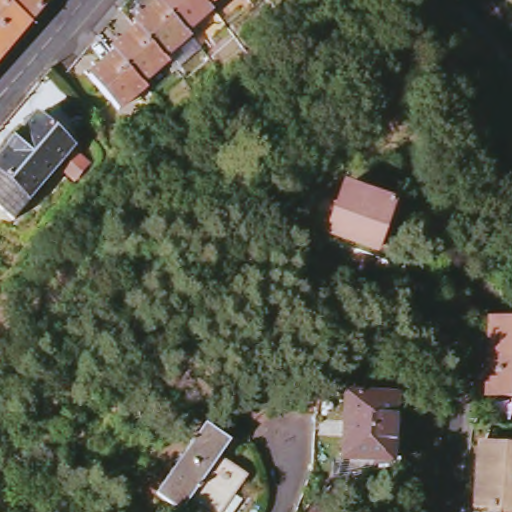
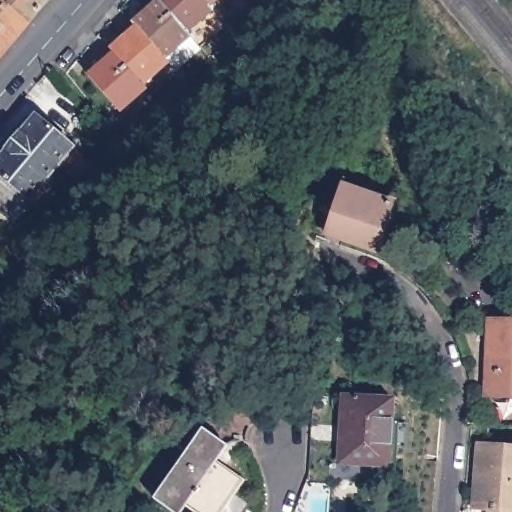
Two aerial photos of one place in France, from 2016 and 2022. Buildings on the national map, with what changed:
unchanged [(47,0),(27,24),(3,51),(0,55),(0,0),(47,0)]
unchanged [(138,24),(135,20),(157,0),(162,0),(187,28),(201,44),(181,63),(178,60),(173,63),(168,59),(138,24)]
unchanged [(207,0),(209,2),(212,6),(187,28),(162,0),(207,0)]
unchanged [(211,0),(209,2),(207,0),(211,0)]
unchanged [(115,49),(113,46),(138,24),(168,59),(143,80),(115,49)]
unchanged [(143,80),(146,85),(120,107),(89,72),(115,49),(143,80)]
unchanged [(0,212),(0,155),(31,117),(71,150),(69,152),(84,164),(71,180),(55,167),(40,185),(43,187),(29,204),(26,201),(10,220),(0,212)]
unchanged [(328,235),(344,187),(393,205),(378,252),(328,235)]
unchanged [(489,322),(512,323),(512,397),(486,396),(489,322)]
unchanged [(343,417),(344,397),(394,401),(394,420),(343,417)]
unchanged [(394,420),(390,467),(339,465),(343,417),(394,420)]
unchanged [(188,505),(183,512),(173,512),(155,500),(203,430),(228,447),(216,464),(243,482),(222,512),(199,512),(188,505)]
unchanged [(494,505),(480,503),(486,442),(512,444),(512,512),(493,512),(494,505)]

